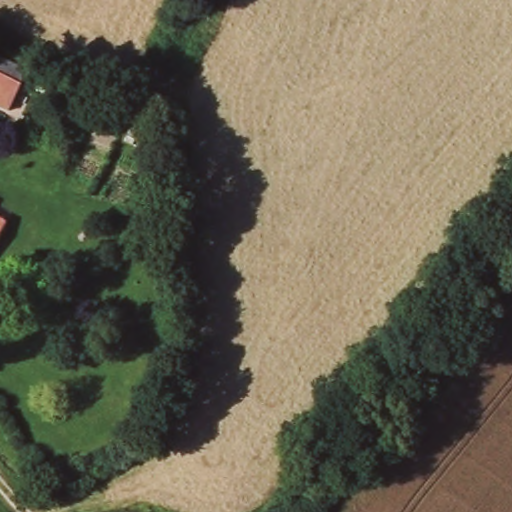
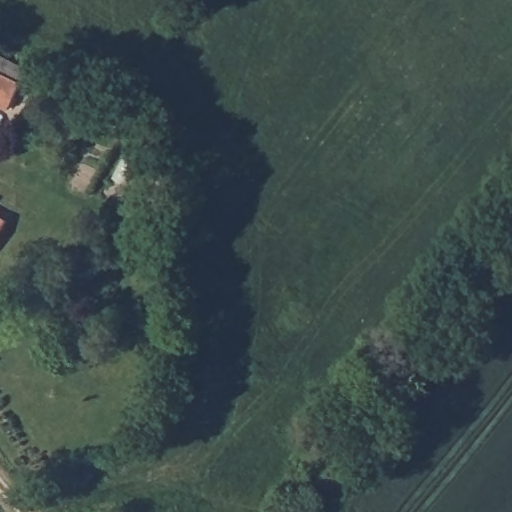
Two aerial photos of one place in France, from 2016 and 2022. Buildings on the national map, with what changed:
unchanged [(20,84),(8,111),(0,107),(0,75),(20,84)]
unchanged [(0,233),(0,220),(5,223),(0,233)]

